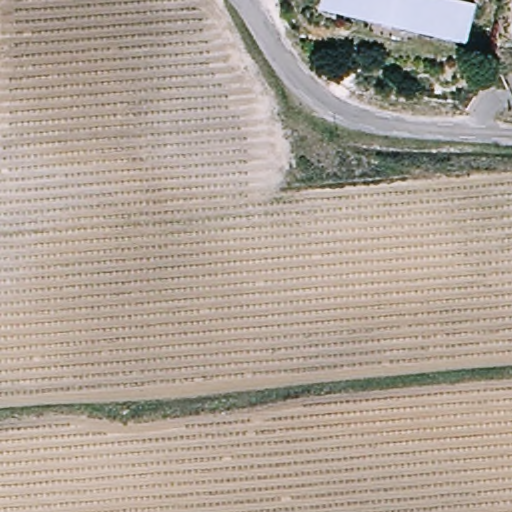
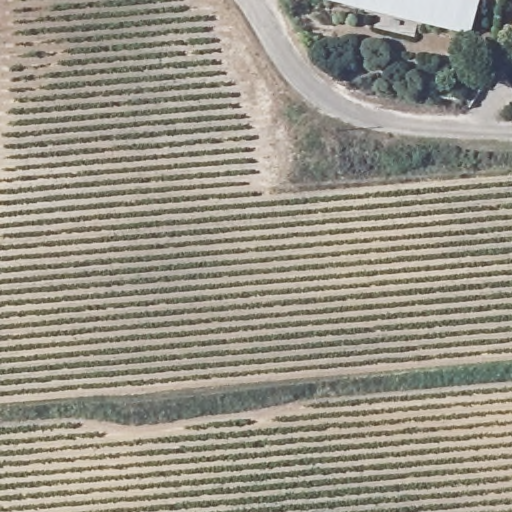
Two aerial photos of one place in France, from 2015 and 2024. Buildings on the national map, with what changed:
unchanged [(470,31),(349,0),(467,0),(477,2),(470,31)]

